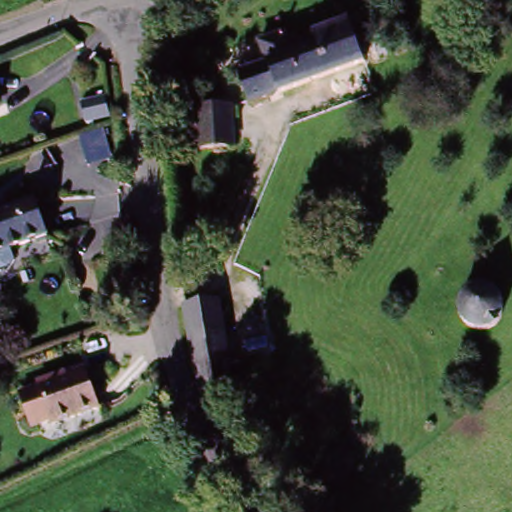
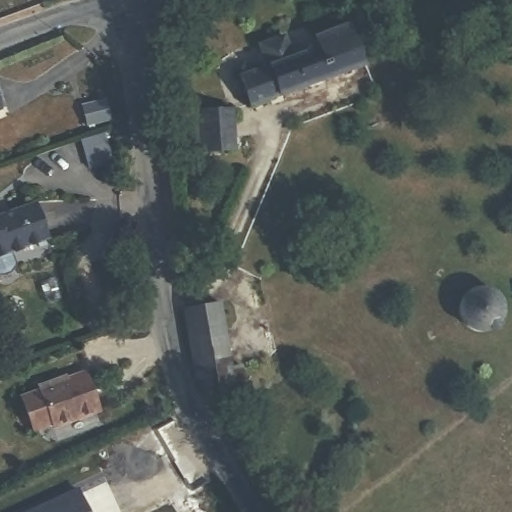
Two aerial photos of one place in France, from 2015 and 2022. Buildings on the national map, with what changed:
unchanged [(248,106),(238,79),(269,66),(263,51),(286,44),(292,59),(317,49),(314,36),(347,25),(362,64),(248,106)]
unchanged [(0,111),(0,104),(2,110),(0,111)]
unchanged [(202,149),(187,150),(186,111),(233,110),(234,149),(220,149),(219,161),(202,160),(202,149)]
unchanged [(5,278),(0,279),(0,218),(30,208),(43,245),(7,257),(10,273),(5,278)]
unchanged [(495,335),(485,339),(477,339),(467,335),(462,330),(458,320),(458,312),(462,303),(468,298),(477,294),(486,294),(495,298),(500,303),(505,312),(505,321),(500,330),(495,335)]
unchanged [(182,314),(218,306),(232,371),(241,369),(244,384),(200,394),(182,314)]
unchanged [(20,394),(60,379),(60,382),(87,373),(100,412),(35,433),(20,394)]
new [(80,489),(91,512),(29,512),(80,489)]

